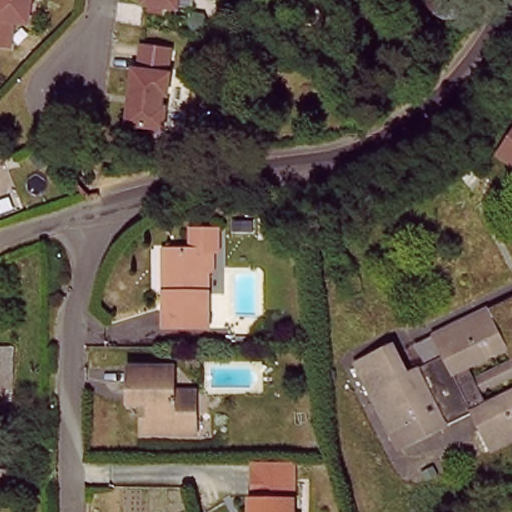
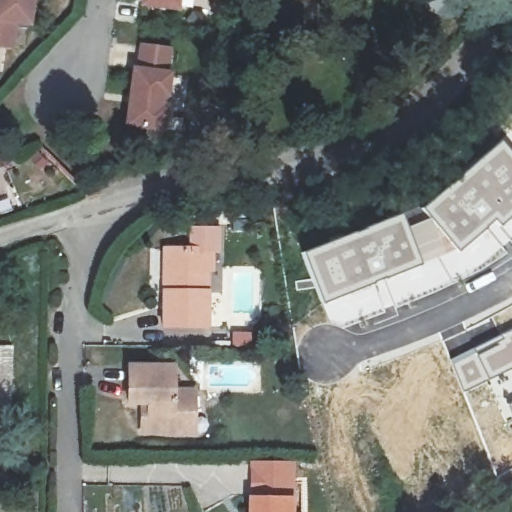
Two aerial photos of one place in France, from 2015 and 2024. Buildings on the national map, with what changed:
unchanged [(0,20),(0,0),(33,0),(30,25),(0,20)]
unchanged [(141,6),(142,0),(178,0),(176,11),(141,6)]
unchanged [(168,51),(165,76),(168,76),(165,97),(161,97),(159,110),(163,111),(161,132),(125,127),(133,71),(138,71),(141,47),(168,51)]
new [(498,228),(509,240),(500,249),(486,233),(457,256),(453,251),(426,215),(419,208),(500,140),(501,141),(512,124),(512,215),(498,228)]
demolished [(512,142),(512,161),(503,154),(512,142)]
new [(400,212),(404,225),(420,266),(335,306),(339,318),(340,318),(339,325),(330,324),(321,305),(298,252),(400,212)]
new [(426,215),(453,251),(420,266),(404,225),(426,215)]
new [(512,215),(512,238),(509,240),(498,228),(512,215)]
unchanged [(171,311),(166,277),(175,276),(173,231),(208,230),(212,310),(171,311)]
demolished [(483,420),(473,425),(467,407),(391,437),(354,339),(390,324),(405,360),(441,346),(455,341),(444,315),(512,287),(512,432),(492,440),(483,420)]
new [(512,327),(512,421),(510,417),(507,419),(487,382),(464,393),(449,360),(512,327)]
unchanged [(0,345),(15,344),(16,383),(16,407),(0,408),(0,345)]
unchanged [(171,365),(172,387),(193,389),(195,421),(188,422),(186,436),(148,431),(143,401),(126,402),(128,362),(171,365)]
unchanged [(0,449),(13,447),(14,470),(15,475),(0,476),(0,449)]
unchanged [(300,471),(299,501),(298,512),(255,512),(256,500),(256,467),(300,471)]

